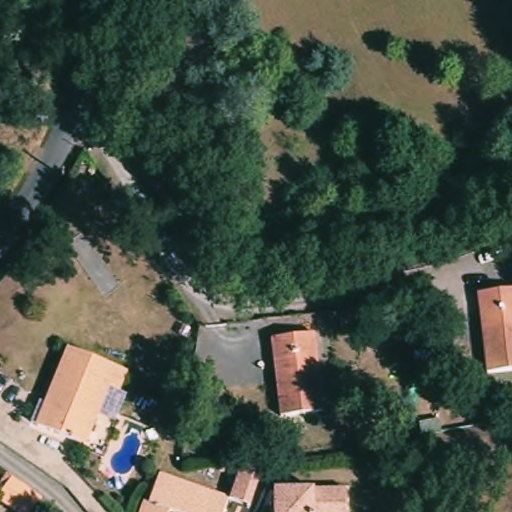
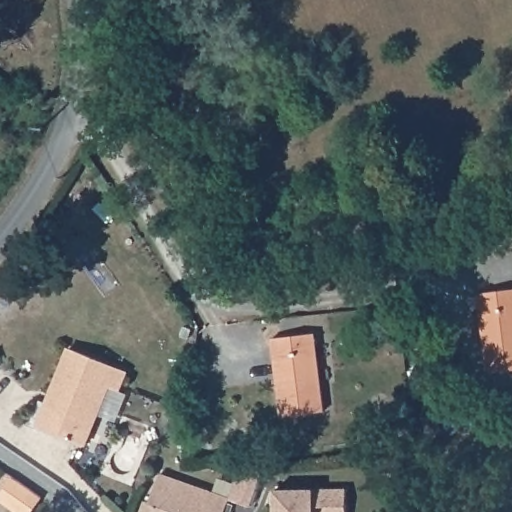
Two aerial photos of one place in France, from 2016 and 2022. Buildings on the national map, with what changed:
unchanged [(472,298),(512,289),(512,371),(489,376),(482,340),(480,333),(472,298)]
unchanged [(323,412),(281,417),(271,339),(313,334),(323,412)]
unchanged [(70,349),(127,373),(120,392),(110,388),(87,445),(32,423),(41,401),(47,403),(50,397),(70,349)]
unchanged [(143,503),(148,504),(160,475),(230,499),(225,512),(170,512),(139,512),(143,503)]
unchanged [(33,512),(13,512),(1,503),(0,503),(0,494),(12,478),(42,499),(37,507),(33,512)]
unchanged [(271,489),(312,489),(345,489),(346,512),(271,512),(271,489)]

